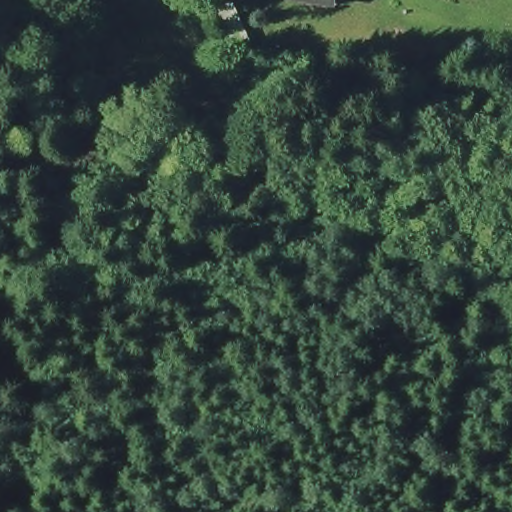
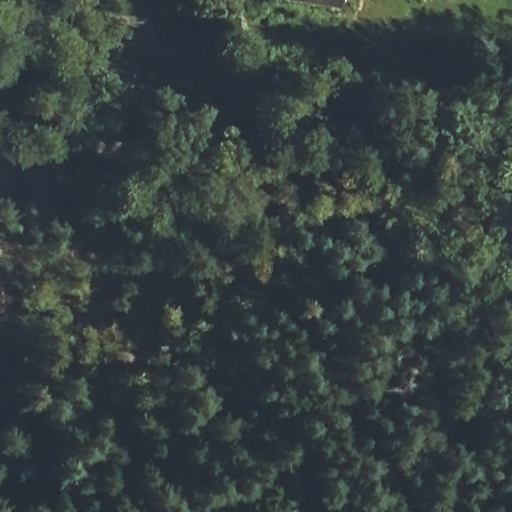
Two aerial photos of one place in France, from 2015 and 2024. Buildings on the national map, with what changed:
unchanged [(337,9),(285,0),(338,0),(337,9)]

